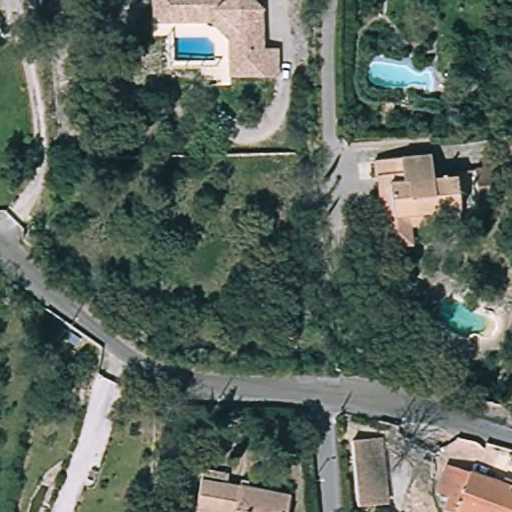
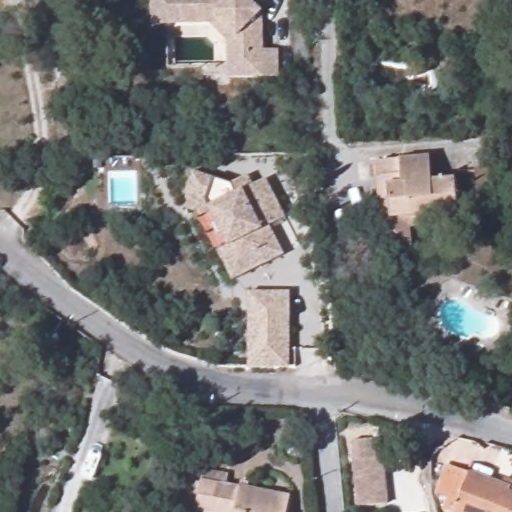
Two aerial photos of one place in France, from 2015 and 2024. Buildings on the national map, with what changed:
unchanged [(240,55),(239,40),(215,15),(154,16),(153,0),(250,0),(265,15),(265,80),(252,80),(240,80),(240,55)]
unchanged [(503,170),(501,142),(512,142),(512,211),(485,212),(481,170),(503,170)]
unchanged [(427,154),(430,177),(452,175),(457,222),(408,226),(410,245),(379,248),(370,160),(427,154)]
new [(226,244),(208,208),(205,202),(183,195),(194,170),(212,178),(229,184),(247,174),(254,185),(265,178),(285,218),(269,227),(284,254),(232,281),(216,252),(226,244)]
new [(289,291),(290,370),(248,370),(248,291),(289,291)]
unchanged [(360,509),(355,442),(387,440),(394,506),(360,509)]
unchanged [(229,472),(227,482),(291,494),(287,512),(198,512),(195,511),(203,467),(229,472)]
unchanged [(454,502),(442,497),(452,468),(512,489),(512,512),(450,512),(454,502)]

